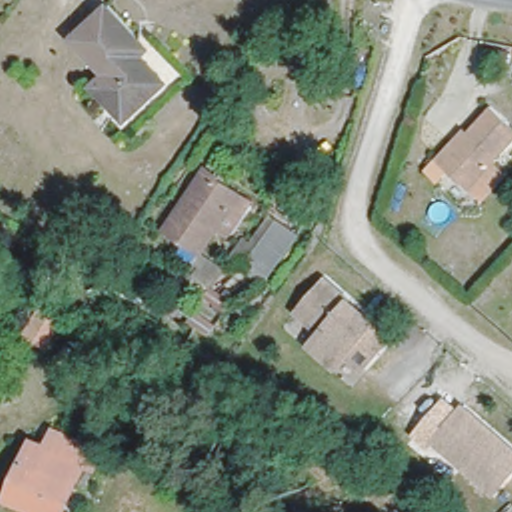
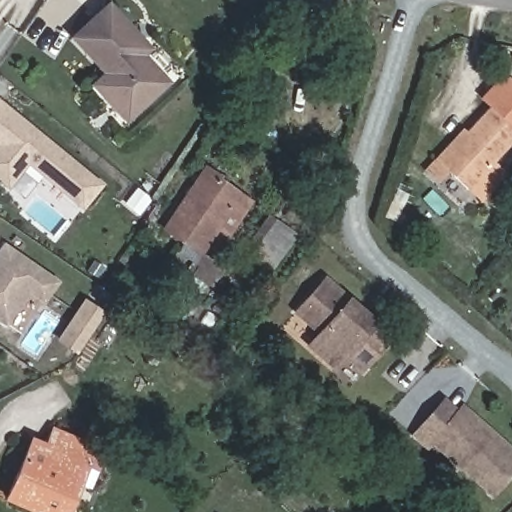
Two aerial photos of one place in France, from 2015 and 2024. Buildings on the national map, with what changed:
unchanged [(107,101),(92,85),(105,72),(73,37),(106,5),(144,46),(137,53),(164,82),(147,97),(125,119),(107,101)]
unchanged [(462,127),(488,98),(512,119),(512,133),(467,182),(433,152),(445,140),(451,145),(466,129),(462,127)]
new [(16,116),(21,119),(102,187),(82,209),(29,164),(9,188),(0,181),(0,103),(16,116)]
unchanged [(207,162),(216,168),(214,172),(239,188),(200,244),(167,221),(207,162)]
unchanged [(271,214),(291,227),(260,275),(240,261),(271,214)]
new [(0,324),(0,245),(2,242),(59,282),(42,304),(28,295),(5,327),(0,324)]
unchanged [(350,295),(383,324),(398,337),(370,374),(350,361),(341,372),(307,343),(317,329),(294,309),(326,277),(350,295)]
demolished [(42,292),(67,308),(49,343),(25,327),(42,292)]
new [(86,301),(105,314),(80,350),(61,338),(86,301)]
unchanged [(512,480),(493,501),(427,443),(462,403),(512,446),(512,480)]
unchanged [(31,433),(45,439),(52,423),(70,431),(102,445),(94,465),(84,461),(60,512),(49,512),(5,491),(31,433)]

